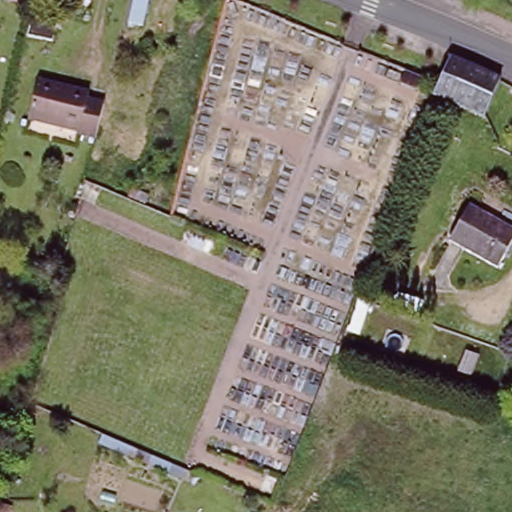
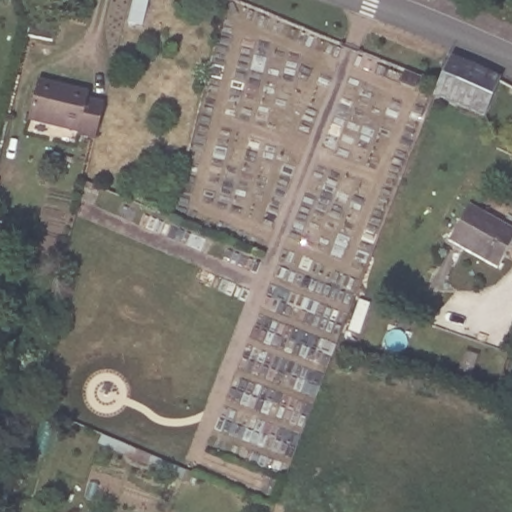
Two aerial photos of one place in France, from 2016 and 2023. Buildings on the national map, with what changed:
unchanged [(37,16),(62,24),(56,46),(30,41),(37,16)]
unchanged [(452,59),(501,80),(487,111),(438,96),(452,59)]
unchanged [(45,80),(93,93),(91,100),(109,105),(99,141),(80,136),(82,131),(35,119),(45,80)]
unchanged [(474,206),(512,226),(512,249),(503,266),(455,239),(474,206)]

